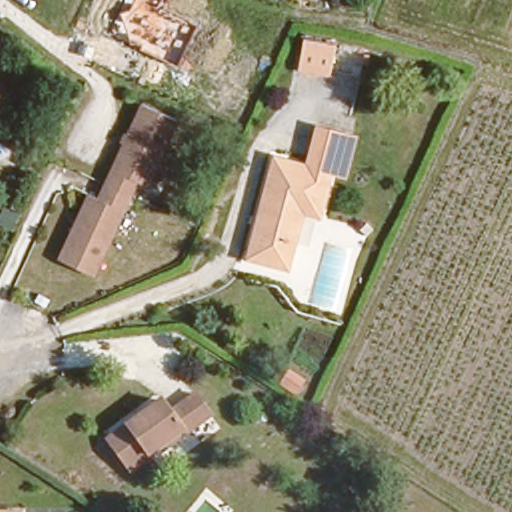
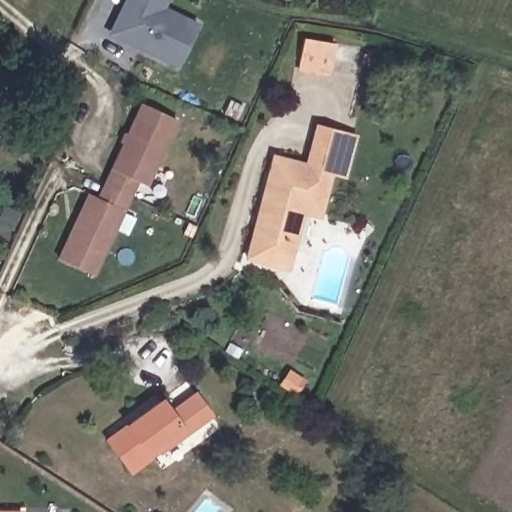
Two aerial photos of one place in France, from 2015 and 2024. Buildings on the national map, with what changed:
new [(123,0),(168,0),(165,7),(196,23),(177,67),(107,34),(123,0)]
unchanged [(341,40),(332,77),(300,70),(302,34),(341,40)]
unchanged [(0,139),(0,91),(21,104),(0,139)]
unchanged [(140,177),(98,272),(55,254),(87,183),(100,188),(137,97),(178,113),(148,179),(140,177)]
new [(315,124),(357,134),(346,177),(334,175),(337,165),(306,156),(315,124)]
unchanged [(307,210),(290,269),(244,256),(274,148),(337,165),(323,213),(307,210)]
unchanged [(107,439),(165,396),(175,410),(198,393),(212,412),(129,473),(107,439)]
unchanged [(0,512),(0,511),(5,512),(0,512)]

